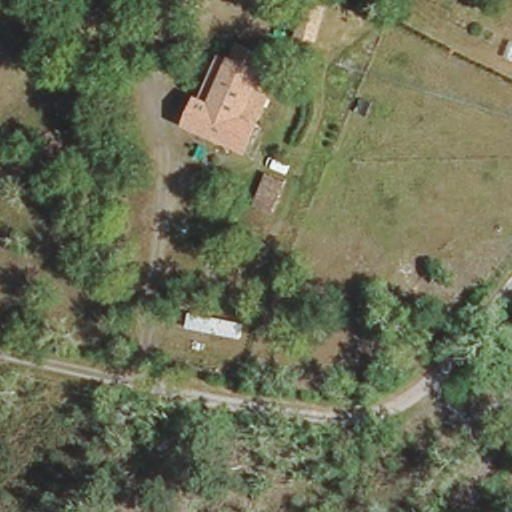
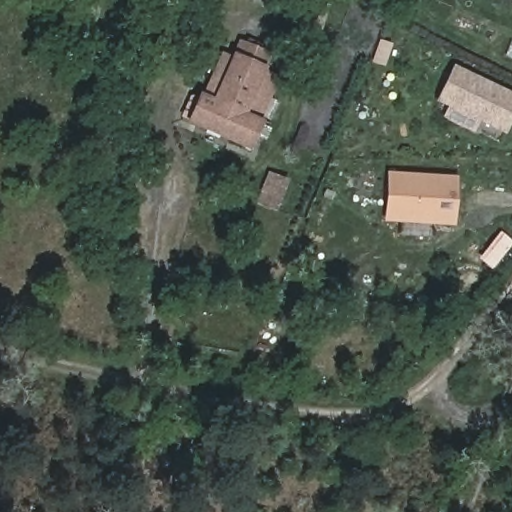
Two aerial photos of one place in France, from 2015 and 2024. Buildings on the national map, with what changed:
unchanged [(260,0),(267,0),(266,2),(260,0)]
unchanged [(307,36),(293,30),(306,1),(320,7),(307,36)]
unchanged [(187,124),(197,100),(210,105),(240,32),(245,35),(247,29),(264,36),(262,42),(267,44),(262,57),(277,64),(244,147),(187,124)]
new [(512,122),(509,129),(482,117),(477,129),(451,117),(462,91),(450,86),(457,69),(512,93),(512,122)]
new [(456,105),(443,100),(450,86),(462,91),(456,105)]
new [(435,228),(434,237),(399,235),(400,222),(383,222),(386,172),(458,176),(455,230),(435,228)]
unchanged [(272,211),(257,205),(269,174),(285,181),(272,211)]

